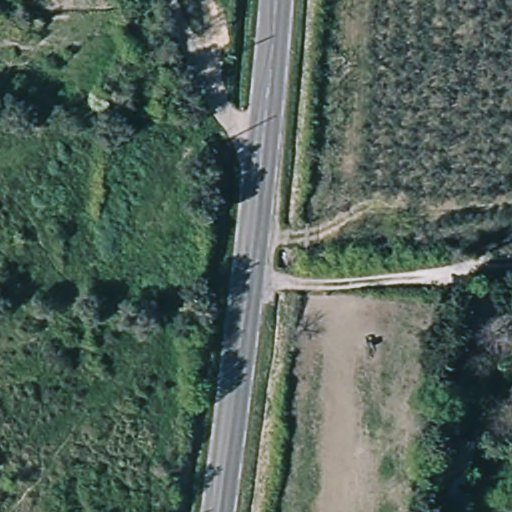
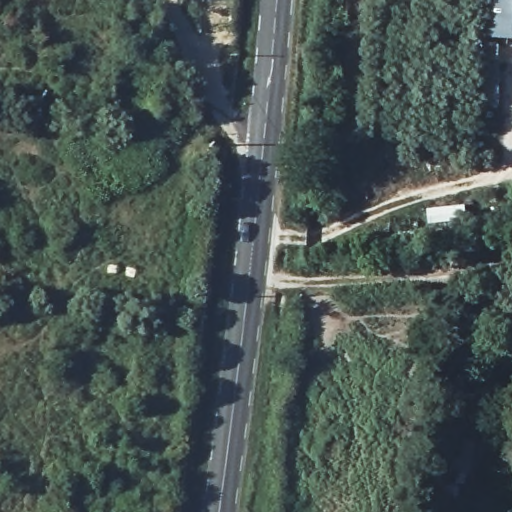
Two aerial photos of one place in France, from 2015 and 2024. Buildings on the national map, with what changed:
new [(493,0),(512,0),(512,35),(492,34),(493,0)]
unchanged [(487,481),(485,512),(464,512),(467,480),(487,481)]

